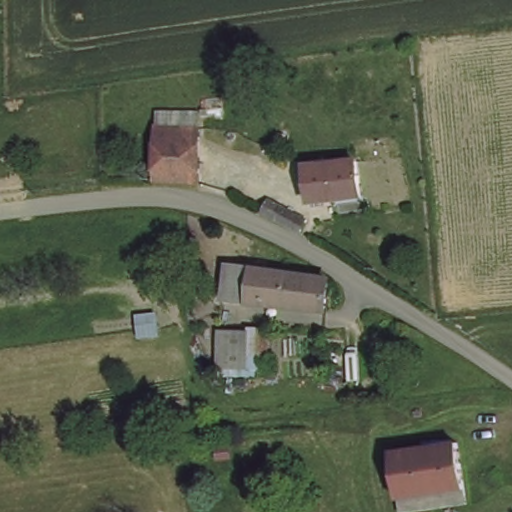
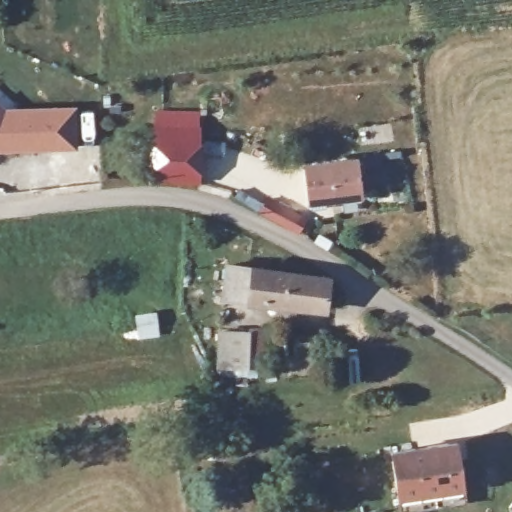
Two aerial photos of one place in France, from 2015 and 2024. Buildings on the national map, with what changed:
new [(5,105),(79,105),(81,150),(0,153),(0,103),(5,105)]
unchanged [(156,180),(154,134),(153,112),(195,110),(196,130),(198,178),(156,180)]
unchanged [(362,195),(310,204),(305,169),(356,160),(362,195)]
unchanged [(304,219),(297,232),(265,216),(271,203),(304,219)]
unchanged [(304,280),(302,310),(227,302),(211,301),(214,269),(230,270),(297,276),(304,280)]
unchanged [(220,325),(269,326),(267,355),(258,355),(257,369),(217,364),(220,325)]
unchanged [(385,449),(454,436),(462,481),(394,493),(385,449)]
unchanged [(466,500),(403,512),(397,512),(394,493),(462,481),(466,500)]

